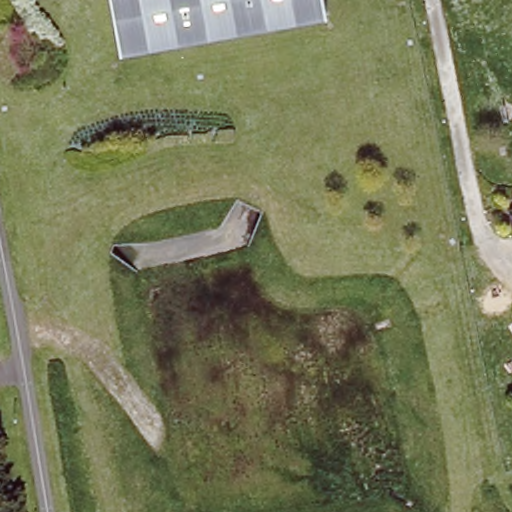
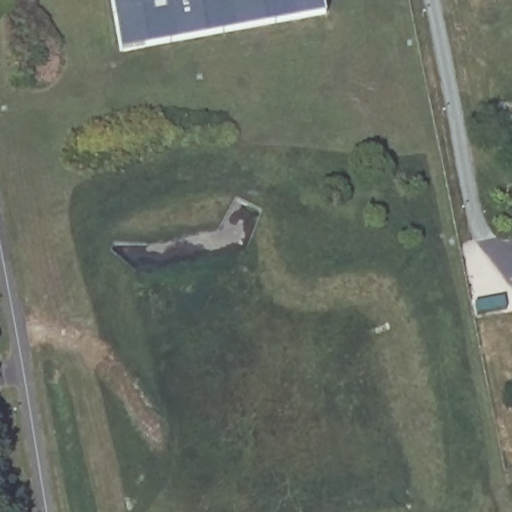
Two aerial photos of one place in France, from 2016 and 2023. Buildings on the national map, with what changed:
unchanged [(120,52),(111,0),(324,0),(327,14),(120,52)]

